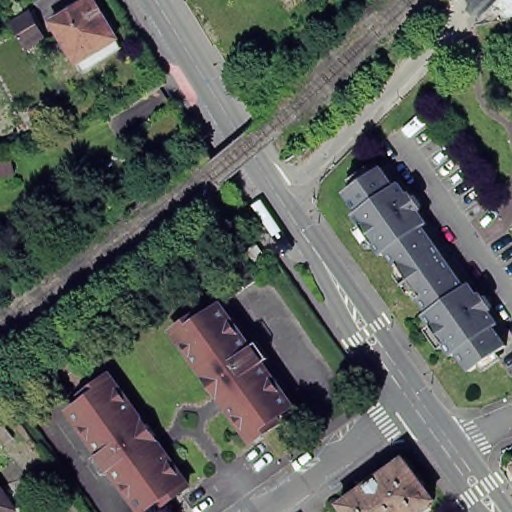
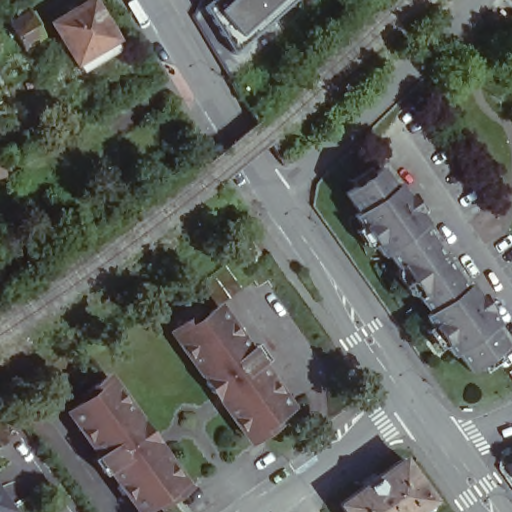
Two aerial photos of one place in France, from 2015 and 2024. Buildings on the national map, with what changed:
unchanged [(77,62),(53,22),(89,0),(92,0),(103,17),(105,17),(107,19),(108,20),(110,22),(111,24),(111,26),(111,29),(111,31),(115,39),(120,47),(82,70),(77,62)]
new [(295,0),(233,54),(204,7),(212,0),(295,0)]
unchanged [(13,29),(9,23),(29,12),(30,13),(33,12),(40,24),(37,26),(39,31),(44,39),(25,50),(13,29)]
unchanged [(10,159),(14,173),(0,177),(0,161),(10,159)]
unchanged [(399,265),(397,266),(386,252),(382,255),(353,214),(358,211),(344,192),(380,167),(393,186),(398,183),(406,195),(413,195),(420,205),(418,211),(427,224),(422,227),(443,257),(410,280),(399,265)]
unchanged [(251,239),(263,255),(253,262),(242,246),(251,239)]
unchanged [(443,257),(464,286),(468,283),(477,295),(484,296),(490,305),(488,312),(497,324),(492,327),(506,346),(470,371),(457,352),(452,355),(423,314),(428,311),(418,297),(420,295),(410,280),(443,257)]
unchanged [(248,348),(252,345),(253,346),(251,347),(262,361),(263,360),(264,361),(259,364),(290,407),(263,425),(267,431),(252,441),(241,426),(242,419),(235,418),(226,405),(230,403),(222,391),(219,394),(213,393),(205,382),(206,376),(210,374),(202,363),(198,366),(189,353),(190,346),(183,345),(172,330),(187,319),(191,324),(217,305),(218,306),(248,348)]
unchanged [(112,376),(123,391),(122,398),(129,399),(138,411),(134,414),(142,425),(145,423),(151,424),(159,434),(158,440),(154,443),(162,454),(166,451),(175,463),(174,470),(181,472),(192,487),(177,497),(173,493),(147,512),(116,469),(112,472),(112,471),(113,470),(102,456),(101,457),(100,456),(105,453),(74,410),(76,409),(101,391),(97,386),(112,376)]
unchanged [(13,438),(1,447),(0,446),(0,421),(13,438)]
unchanged [(420,512),(350,512),(344,504),(377,480),(407,458),(413,465),(437,499),(420,512)]
unchanged [(18,510),(15,512),(0,512),(0,485),(18,510)]

